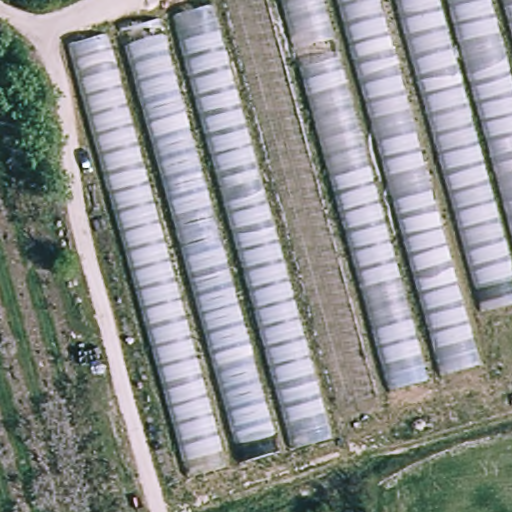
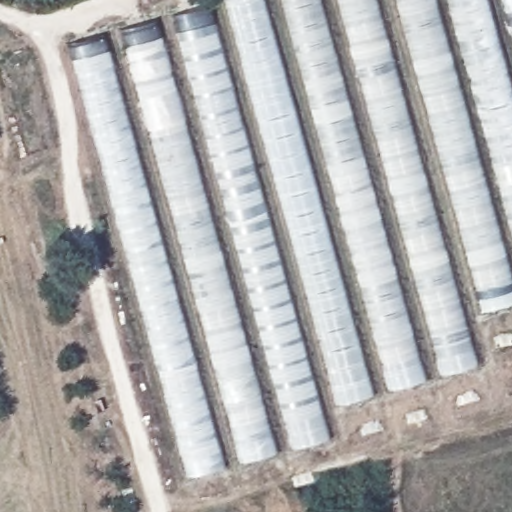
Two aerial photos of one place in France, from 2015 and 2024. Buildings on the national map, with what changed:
unchanged [(512,0),(512,300),(466,314),(483,360),(326,407),(335,436),(182,475),(65,41),(216,0),(512,0)]

